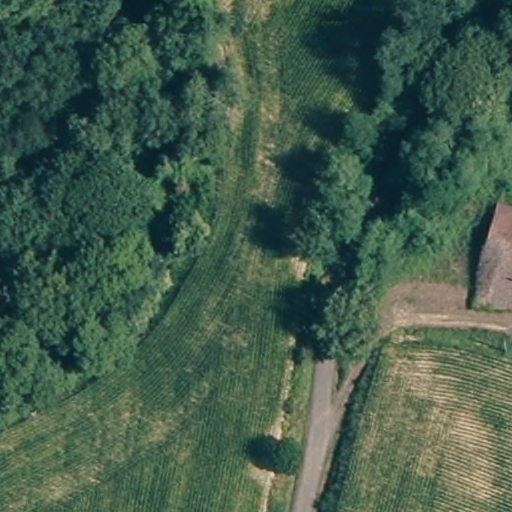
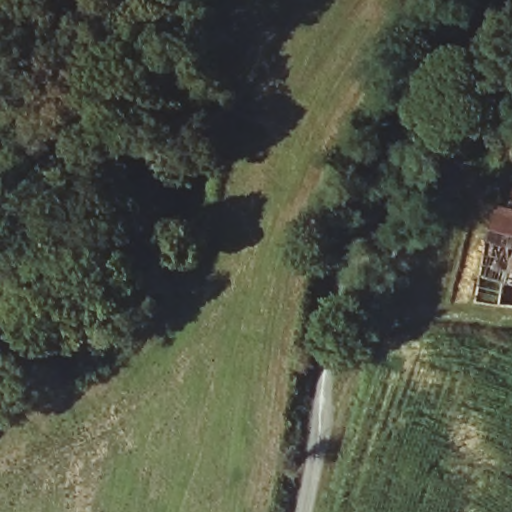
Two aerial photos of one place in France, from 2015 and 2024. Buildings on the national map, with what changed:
unchanged [(487,307),(467,302),(492,220),(512,224),(512,320),(486,315),(487,307)]

